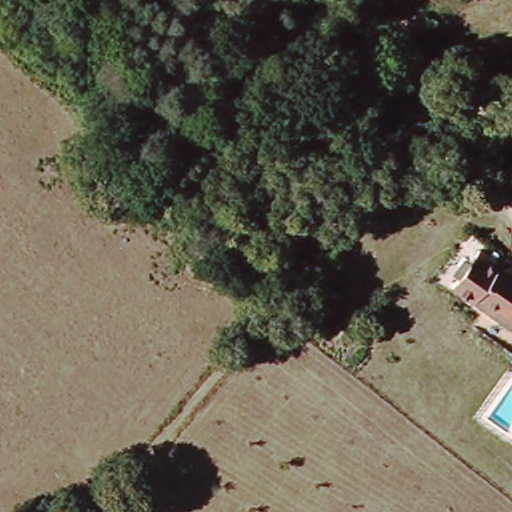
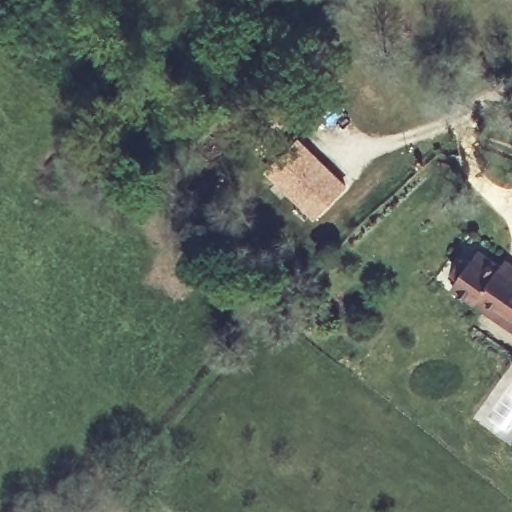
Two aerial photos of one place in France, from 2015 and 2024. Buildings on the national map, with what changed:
new [(301,138),(349,185),(314,218),(266,170),(301,138)]
unchanged [(458,288),(484,250),(507,265),(512,260),(512,325),(481,303),(458,288)]

